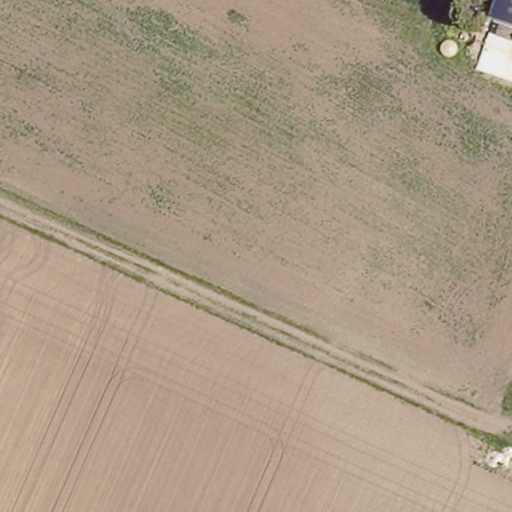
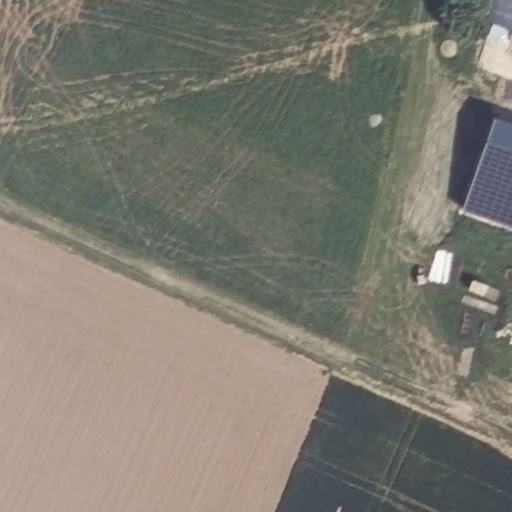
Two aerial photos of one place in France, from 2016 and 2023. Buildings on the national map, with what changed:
unchanged [(488,0),(512,0),(512,20),(485,8),(488,0)]
new [(512,123),(512,225),(463,209),(494,116),(512,123)]

